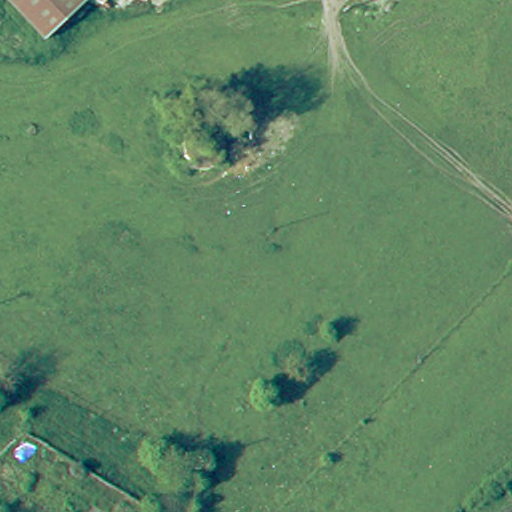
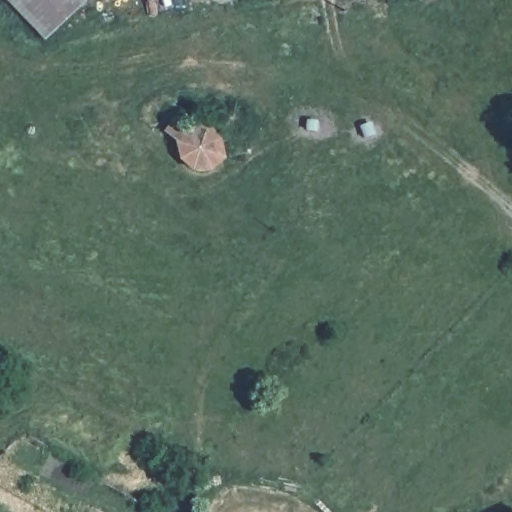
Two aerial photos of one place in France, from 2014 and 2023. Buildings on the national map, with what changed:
unchanged [(42,39),(6,0),(86,0),(42,39)]
new [(220,140),(223,160),(208,171),(191,170),(178,160),(174,141),(162,133),(172,118),(185,127),(206,123),(220,140)]
unchanged [(504,512),(512,506),(512,512),(504,512)]

